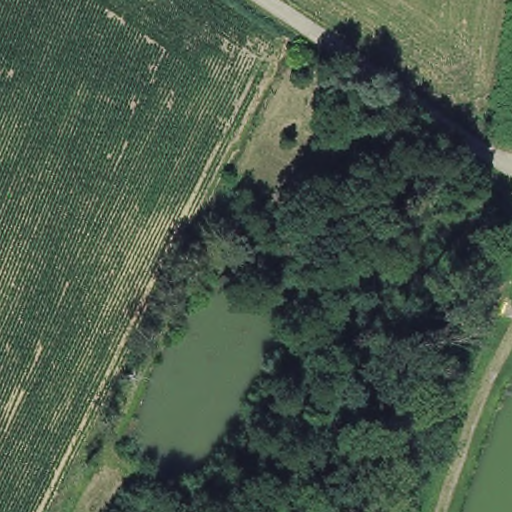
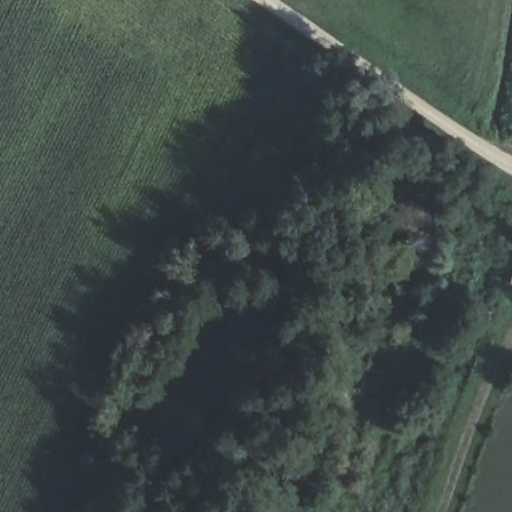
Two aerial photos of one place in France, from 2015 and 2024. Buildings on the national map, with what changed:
unchanged [(307,235),(297,258),(263,246),(280,218),(307,235)]

